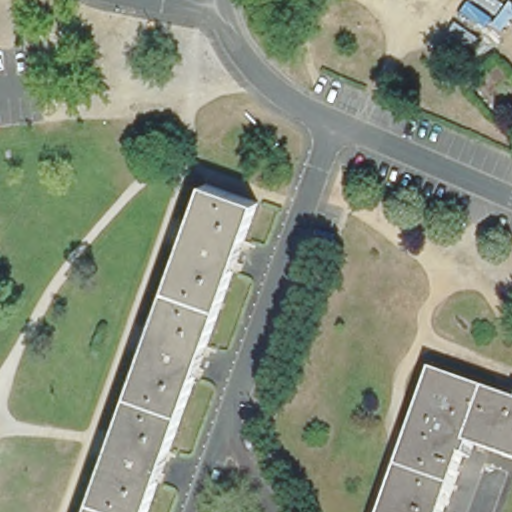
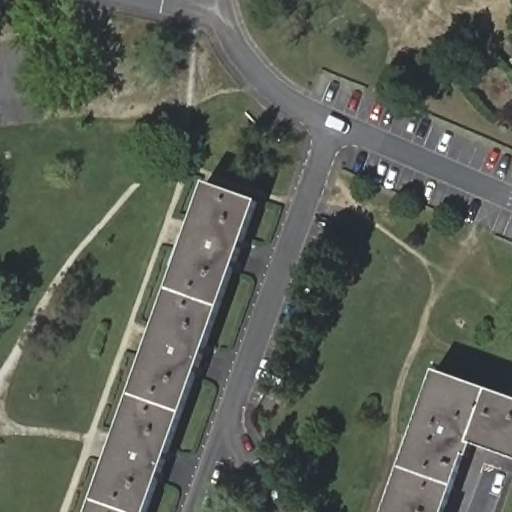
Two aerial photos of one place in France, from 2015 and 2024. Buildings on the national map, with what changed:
unchanged [(210,185),(263,204),(152,512),(91,512),(210,185)]
unchanged [(487,453),(473,450),(468,462),(465,460),(458,477),(446,510),(446,512),(387,512),(388,508),(408,449),(411,442),(435,376),(497,398),(505,401),(512,404),(512,463),(503,460),(487,453)]

